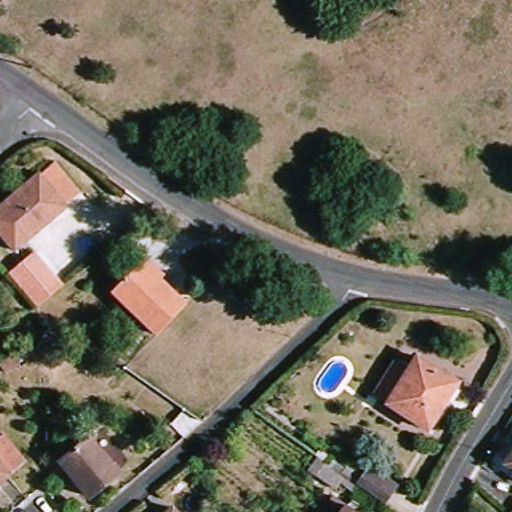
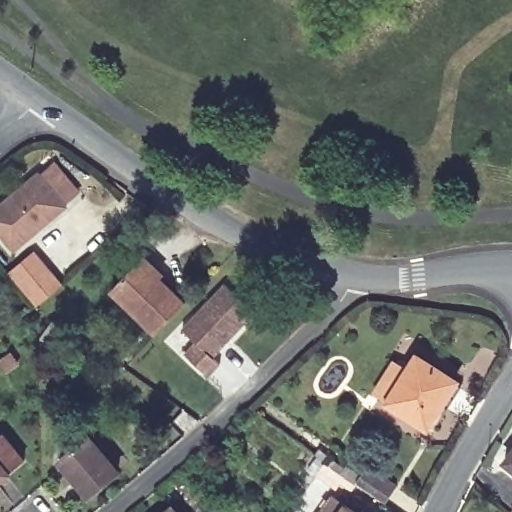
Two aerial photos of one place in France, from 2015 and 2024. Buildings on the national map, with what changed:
unchanged [(12,254),(0,240),(0,207),(36,178),(37,179),(51,167),(76,197),(61,209),(62,211),(12,254)]
unchanged [(35,250),(62,283),(38,304),(10,270),(35,250)]
unchanged [(147,264),(156,257),(173,276),(170,279),(192,305),(162,334),(120,290),(147,264)]
new [(230,287),(258,317),(213,359),(221,367),(208,378),(186,355),(197,343),(184,330),(230,287)]
unchanged [(64,320),(73,326),(65,339),(55,332),(64,320)]
unchanged [(456,380),(427,425),(389,400),(375,391),(390,366),(405,375),(417,356),(456,380)]
unchanged [(30,461),(0,486),(0,442),(7,435),(30,461)]
unchanged [(98,438),(126,473),(97,497),(69,462),(98,438)]
unchanged [(325,461),(329,454),(340,461),(345,453),(398,481),(387,499),(358,481),(355,487),(332,473),(326,482),(307,469),(317,455),(325,461)]
unchanged [(363,512),(337,512),(346,499),(363,512)]
unchanged [(188,512),(179,512),(185,507),(188,512)]

